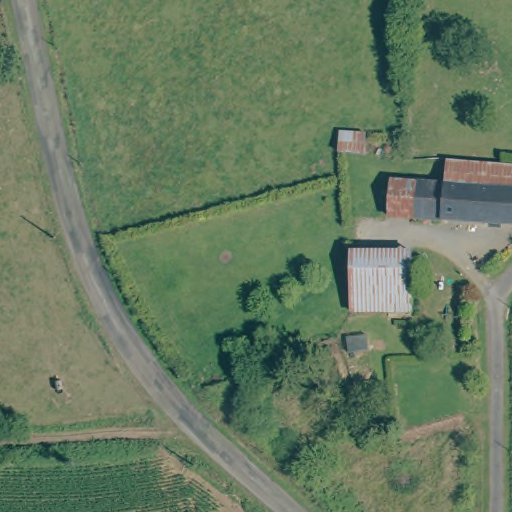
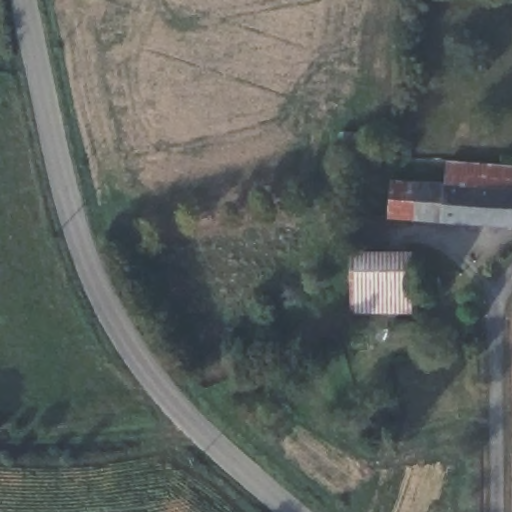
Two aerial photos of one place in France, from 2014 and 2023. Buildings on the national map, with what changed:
unchanged [(423,179),(449,182),(451,158),(512,165),(512,225),(419,217),(394,216),(398,177),(423,179)]
unchanged [(416,251),(414,312),(351,310),(355,248),(416,251)]
unchanged [(342,332),(363,332),(363,346),(342,347),(342,332)]

